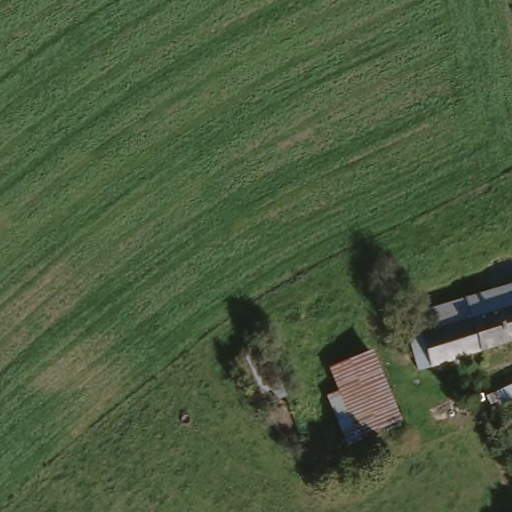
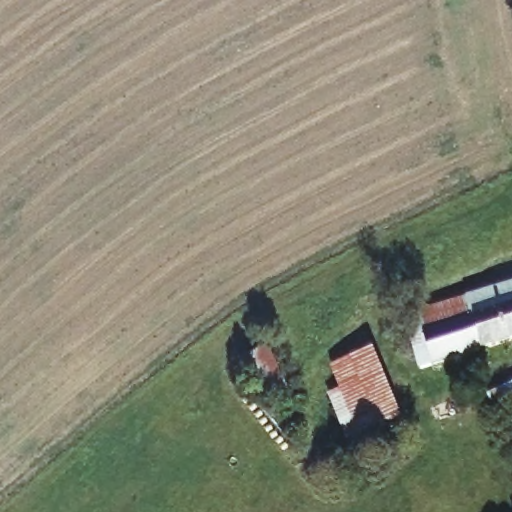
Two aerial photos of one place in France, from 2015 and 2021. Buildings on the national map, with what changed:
unchanged [(512,285),(512,341),(482,352),(467,298),(512,285)]
unchanged [(413,347),(404,318),(442,306),(467,298),(482,352),(433,367),(420,370),(413,347)]
unchanged [(240,359),(265,343),(286,391),(277,395),(273,385),(255,392),(240,359)]
unchanged [(346,391),(337,368),(377,352),(405,420),(353,441),(335,396),(346,391)]
unchanged [(487,396),(492,394),(512,386),(512,403),(499,409),(496,404),(491,405),(487,396)]

